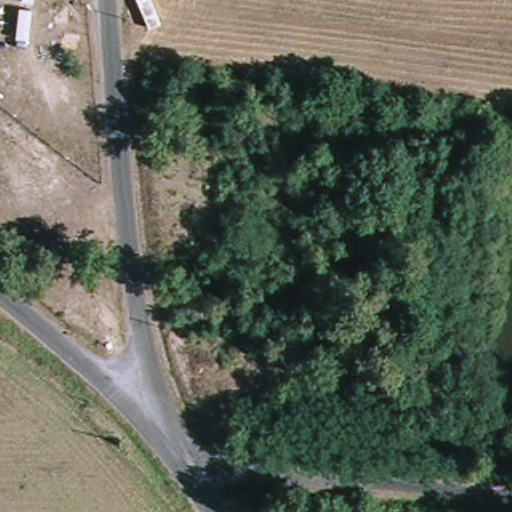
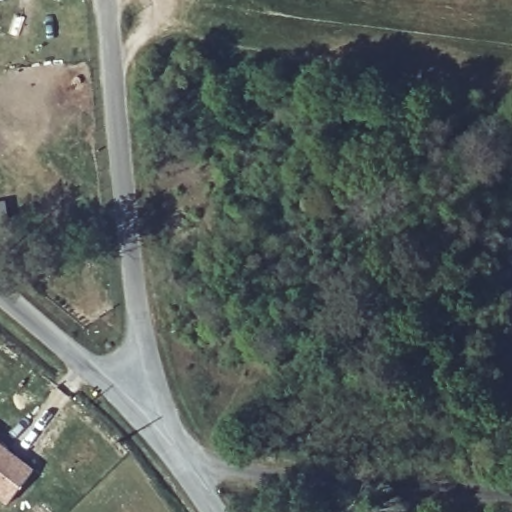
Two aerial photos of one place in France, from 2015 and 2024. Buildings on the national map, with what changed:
unchanged [(236,460),(239,436),(260,439),(258,461),(236,460)]
new [(0,498),(0,447),(32,472),(7,504),(0,498)]
unchanged [(241,507),(247,504),(251,512),(244,512),(241,507)]

